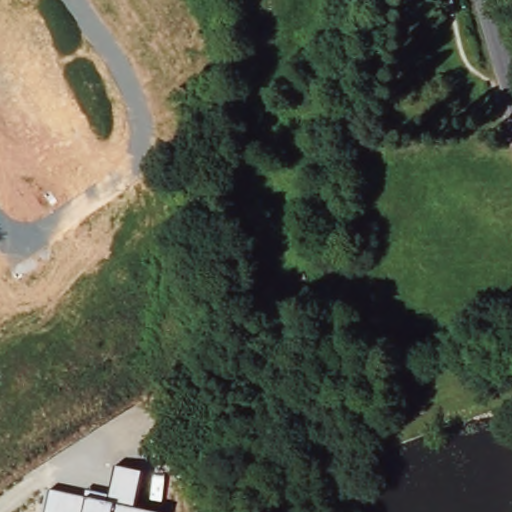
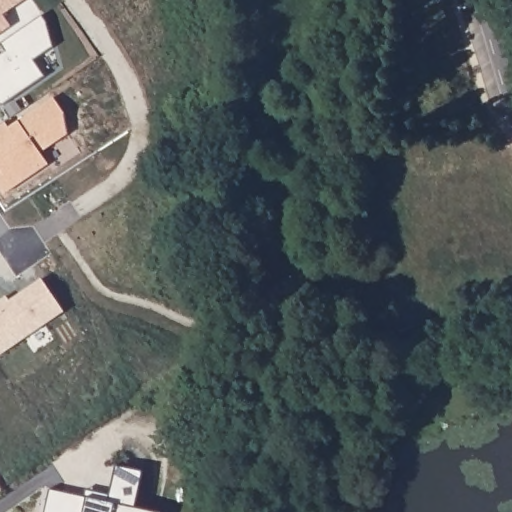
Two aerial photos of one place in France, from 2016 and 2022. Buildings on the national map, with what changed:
new [(2,15),(10,27),(0,33),(0,0),(24,0),(2,15)]
new [(4,52),(0,45),(0,44),(41,15),(45,22),(53,47),(33,61),(44,77),(0,107),(0,106),(0,55),(4,52)]
new [(6,194),(0,185),(0,127),(6,122),(9,127),(19,121),(54,97),(70,133),(40,152),(47,165),(6,194)]
new [(6,295),(10,300),(42,280),(64,311),(0,355),(0,300),(6,295)]
unchanged [(85,498),(87,492),(110,496),(116,467),(142,472),(135,509),(149,512),(44,512),(48,490),(85,498)]

